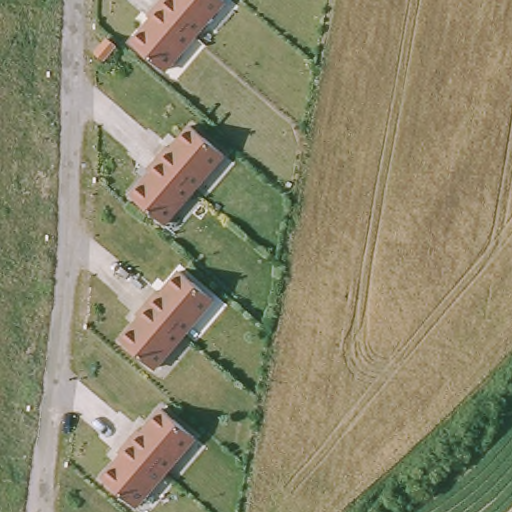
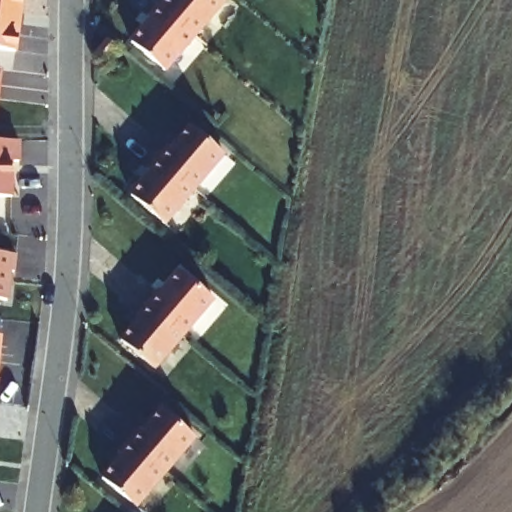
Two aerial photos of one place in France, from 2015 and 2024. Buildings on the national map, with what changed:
new [(0,0),(21,0),(15,52),(0,51),(0,0)]
unchanged [(226,2),(165,72),(128,40),(150,17),(147,15),(159,0),(223,0),(226,2)]
unchanged [(166,225),(130,192),(192,121),(228,154),(166,225)]
new [(17,159),(9,159),(10,195),(0,195),(0,139),(17,139),(17,159)]
new [(15,275),(12,275),(10,301),(0,300),(0,253),(17,255),(15,275)]
unchanged [(157,373),(119,339),(181,268),(215,300),(157,373)]
new [(0,335),(0,321),(1,321),(0,335)]
new [(0,365),(0,335),(3,336),(0,365)]
unchanged [(160,407),(197,440),(137,509),(100,475),(120,454),(117,451),(137,428),(140,430),(160,407)]

